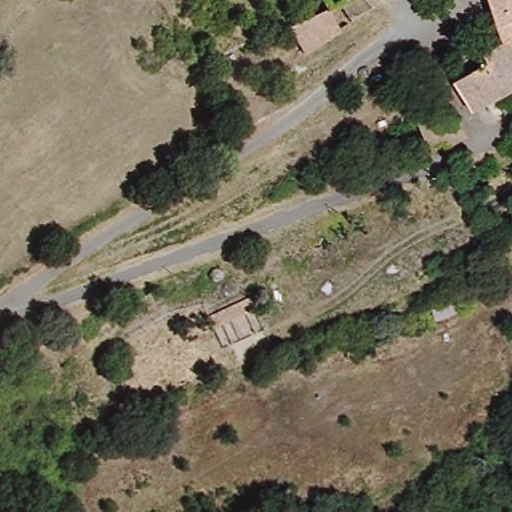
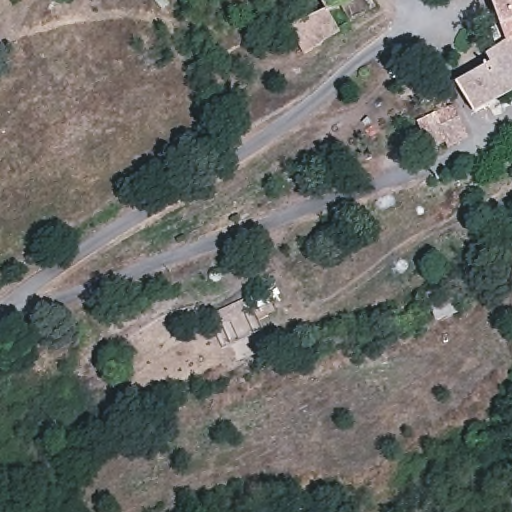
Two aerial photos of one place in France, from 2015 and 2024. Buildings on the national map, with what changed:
unchanged [(331,32),(333,36),(297,59),(280,32),(315,10),(317,13),(340,0),(358,0),(365,11),(331,32)]
unchanged [(464,79),(499,60),(487,39),(508,26),(499,0),(512,0),(512,99),(506,100),(494,105),(491,101),(478,106),(464,79)]
unchanged [(406,123),(427,115),(449,107),(452,115),(459,135),(438,147),(435,142),(418,147),(406,123)]
unchanged [(430,299),(455,293),(459,314),(435,320),(430,299)]

